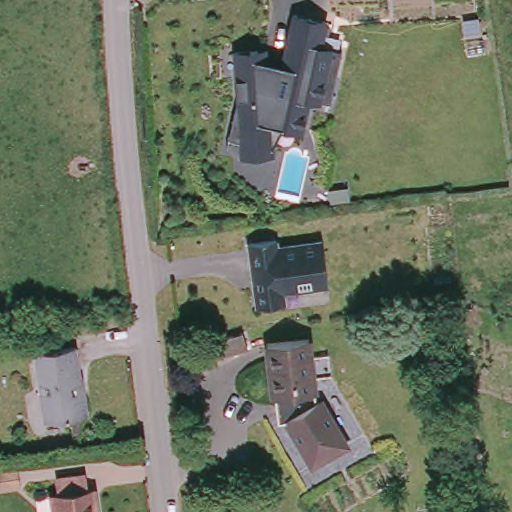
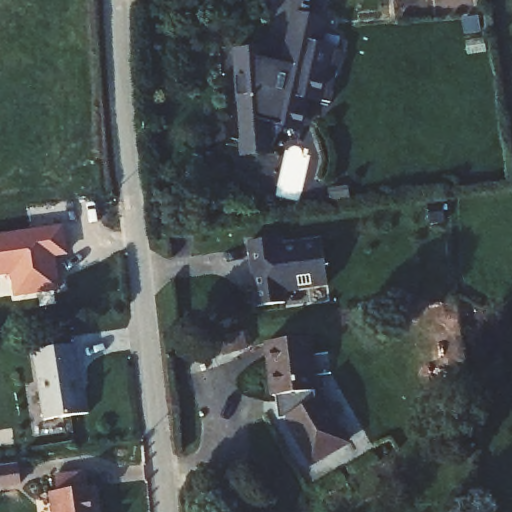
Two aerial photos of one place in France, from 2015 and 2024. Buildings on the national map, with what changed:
unchanged [(328,21),(322,43),(344,50),(332,106),(314,101),(305,132),(301,156),(273,150),(275,157),(240,155),(237,140),(226,137),(236,104),(233,49),(265,47),(267,60),(282,65),(299,16),(328,21)]
new [(56,257),(61,290),(14,297),(10,275),(0,277),(0,234),(64,225),(69,255),(56,257)]
unchanged [(280,234),(281,241),(326,236),(331,282),(287,287),(288,300),(261,303),(253,237),(280,234)]
unchanged [(287,418),(280,419),(276,396),(272,397),(265,342),(312,338),(319,390),(312,390),(317,399),(327,397),(352,442),(312,466),(287,418)]
unchanged [(80,342),(85,387),(87,387),(90,412),(48,417),(40,347),(80,342)]
unchanged [(24,485),(5,487),(0,488),(0,470),(2,470),(22,467),(24,485)]
unchanged [(57,495),(55,480),(82,476),(84,490),(92,488),(95,512),(52,512),(49,496),(57,495)]

